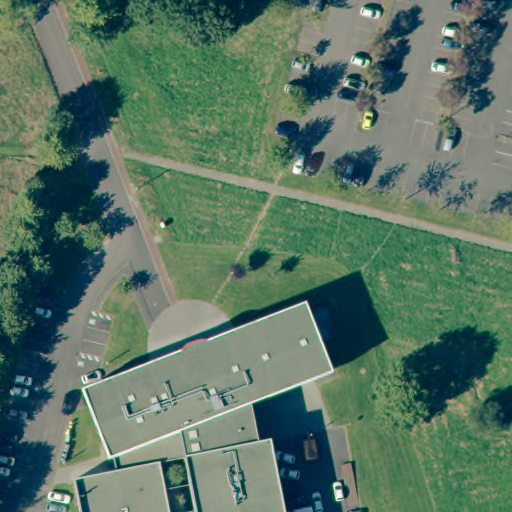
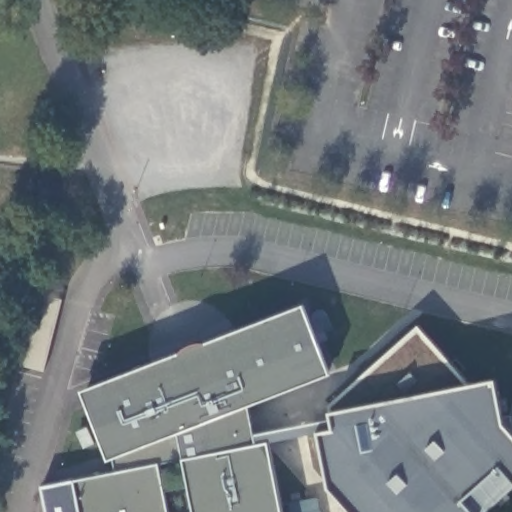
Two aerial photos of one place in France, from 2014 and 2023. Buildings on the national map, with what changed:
unchanged [(160,463),(170,512),(80,512),(74,479),(114,464),(112,456),(110,456),(85,391),(181,354),(187,357),(205,350),(208,344),(303,307),(328,372),(249,403),(258,443),(270,441),(284,512),(195,512),(184,458),(160,463)]
new [(332,411),(330,404),(420,323),(475,382),(497,379),(504,423),(512,431),(512,479),(500,467),(464,501),(474,512),(352,512),(330,488),(319,432),(335,429),(332,411)]

